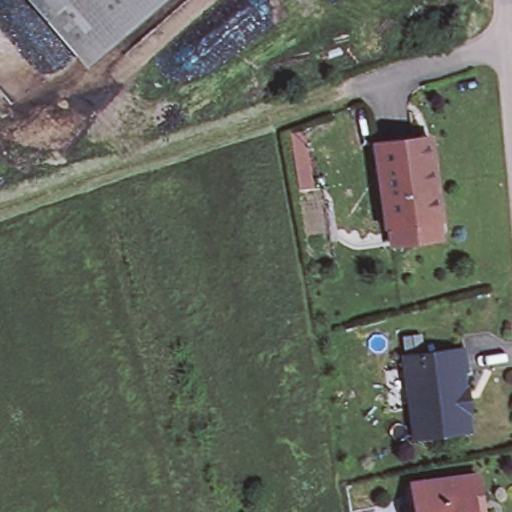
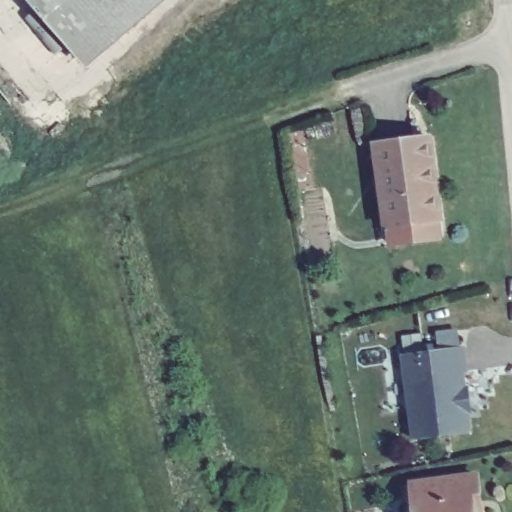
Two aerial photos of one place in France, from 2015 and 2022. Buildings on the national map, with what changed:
unchanged [(25,0),(157,0),(81,65),(25,0)]
unchanged [(426,129),(433,179),(438,210),(416,213),(416,209),(383,214),(371,137),(419,130),(426,129)]
unchanged [(440,229),(386,237),(383,214),(416,209),(416,213),(438,210),(440,229)]
unchanged [(422,342),(423,352),(408,355),(407,343),(422,342)]
unchanged [(476,412),(471,413),(474,433),(418,441),(407,358),(468,351),(470,372),(466,373),(468,390),(473,389),(476,412)]
unchanged [(484,502),(485,512),(418,512),(415,487),(481,479),(484,502)]

